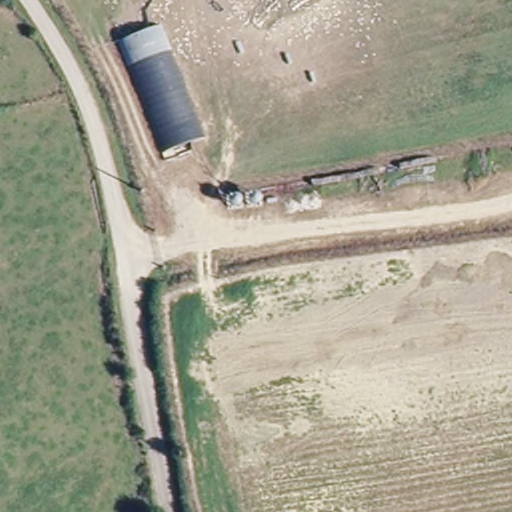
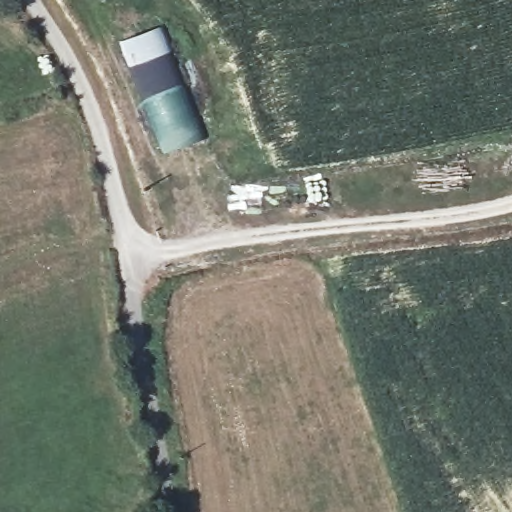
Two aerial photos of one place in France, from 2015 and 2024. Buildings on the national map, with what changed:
unchanged [(161,25),(203,137),(164,151),(123,40),(161,25)]

